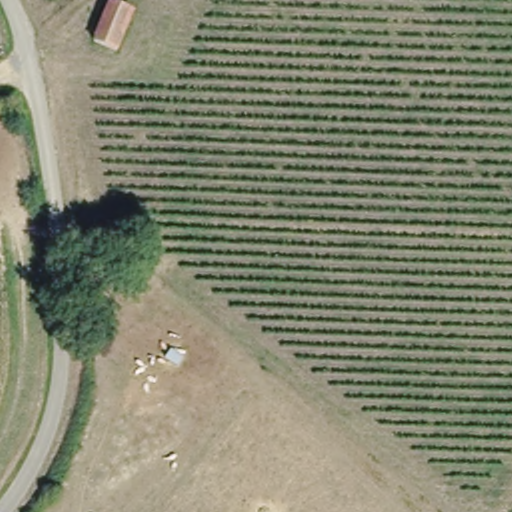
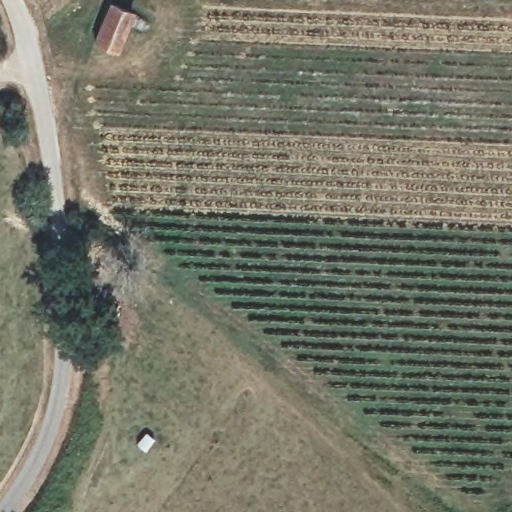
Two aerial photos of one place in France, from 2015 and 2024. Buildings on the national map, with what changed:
unchanged [(114,43),(89,31),(106,0),(121,0),(132,5),(114,43)]

